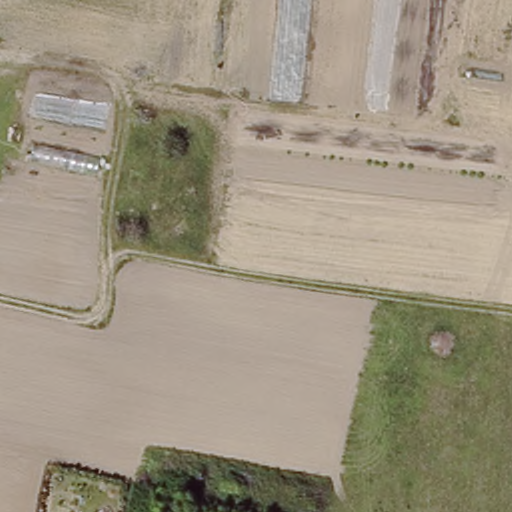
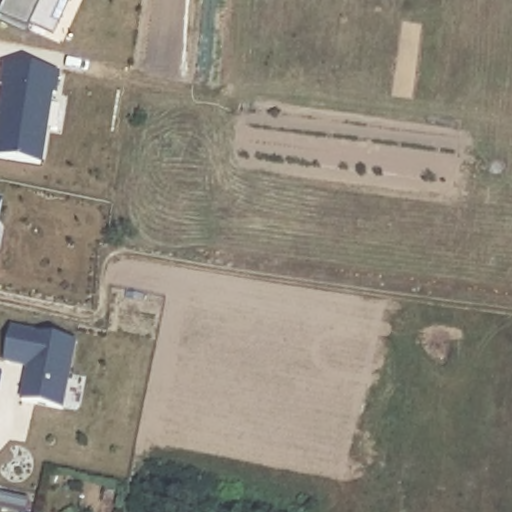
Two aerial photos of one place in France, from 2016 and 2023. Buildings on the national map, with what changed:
new [(30,17),(26,26),(0,14),(0,11),(5,5),(0,2),(0,0),(66,0),(53,27),(30,17)]
new [(0,160),(0,116),(4,87),(2,87),(5,64),(61,72),(57,96),(52,95),(42,165),(0,160)]
demolished [(460,87),(512,95),(512,138),(453,132),(460,87)]
new [(2,201),(0,214),(0,201),(2,201)]
new [(23,402),(31,368),(5,363),(12,327),(78,342),(66,411),(23,402)]

